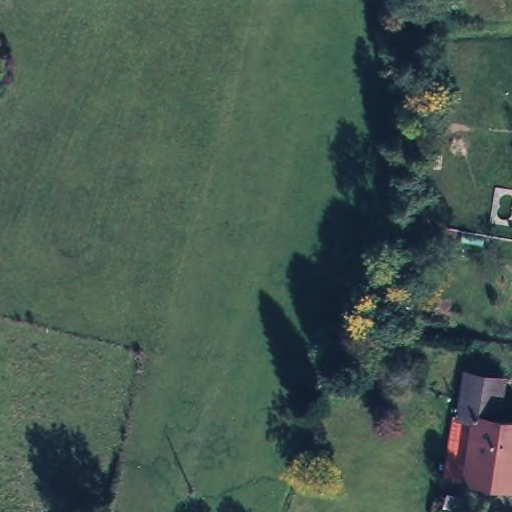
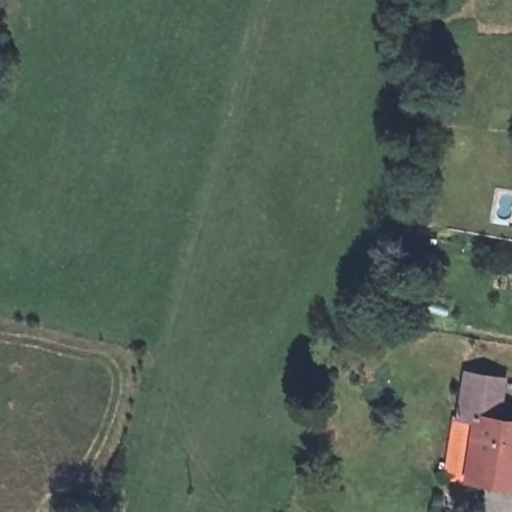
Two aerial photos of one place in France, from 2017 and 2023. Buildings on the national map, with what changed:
unchanged [(436,321),(435,333),(418,330),(420,319),(436,321)]
unchanged [(500,419),(512,421),(512,480),(474,475),(483,418),(465,414),(471,372),(505,377),(500,419)]

